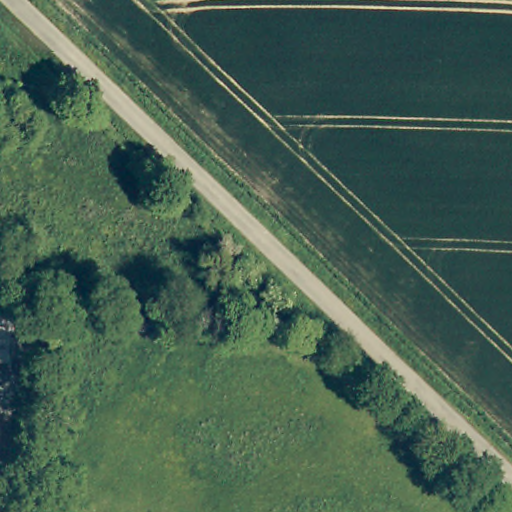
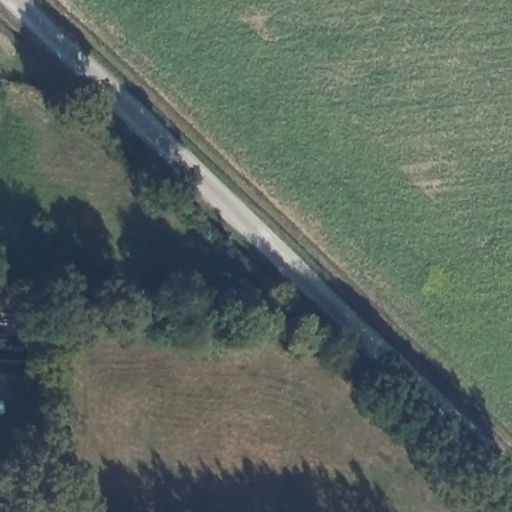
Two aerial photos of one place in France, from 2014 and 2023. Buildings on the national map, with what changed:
unchanged [(37,288),(33,332),(0,331),(0,286),(37,288)]

